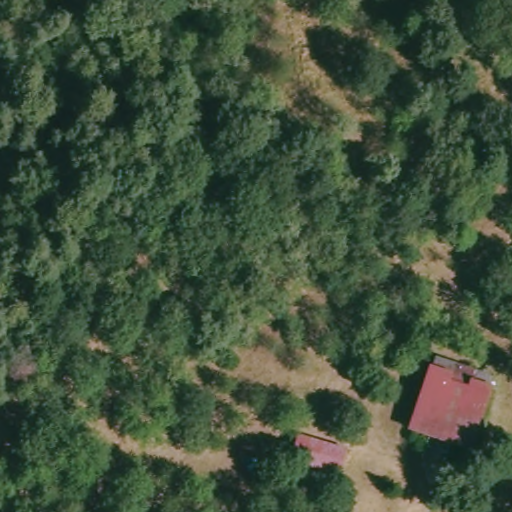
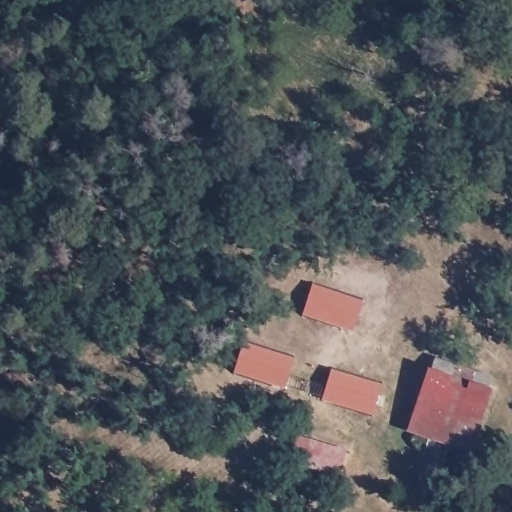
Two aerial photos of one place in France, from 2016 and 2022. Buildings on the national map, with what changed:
new [(305,315),(313,285),(363,300),(355,330),(305,315)]
new [(235,372),(244,342),(294,357),(285,387),(235,372)]
unchanged [(495,378),(472,451),(407,431),(429,358),(495,378)]
new [(332,369),(382,385),(374,415),(322,400),(332,369)]
unchanged [(297,439),(342,452),(335,475),(289,461),(297,439)]

